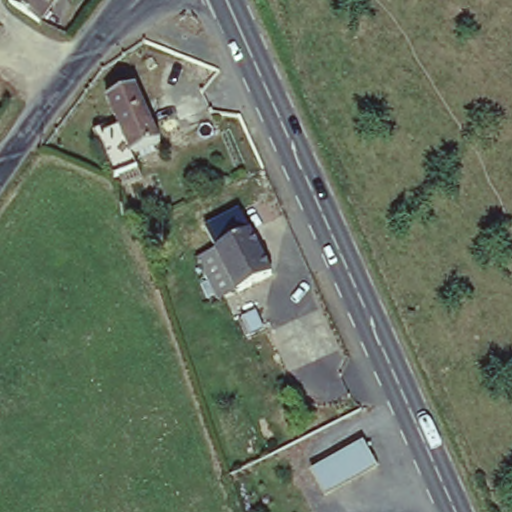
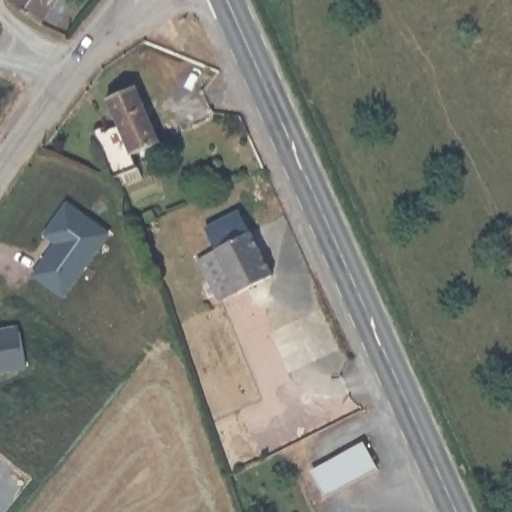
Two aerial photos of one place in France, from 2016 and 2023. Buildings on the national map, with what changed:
unchanged [(58,0),(41,24),(13,4),(16,0),(58,0)]
unchanged [(96,128),(117,119),(109,95),(139,83),(161,140),(132,151),(137,167),(114,176),(96,128)]
new [(32,276),(55,245),(40,235),(62,203),(111,235),(64,300),(32,276)]
unchanged [(256,227),(276,273),(240,291),(236,285),(225,290),(210,297),(204,284),(212,281),(199,254),(207,251),(256,227)]
unchanged [(251,323),(258,337),(245,343),(238,329),(251,323)]
new [(1,373),(0,375),(0,330),(18,326),(28,369),(1,373)]
unchanged [(261,346),(267,358),(258,362),(253,350),(261,346)]
unchanged [(365,443),(375,465),(323,489),(313,467),(365,443)]

